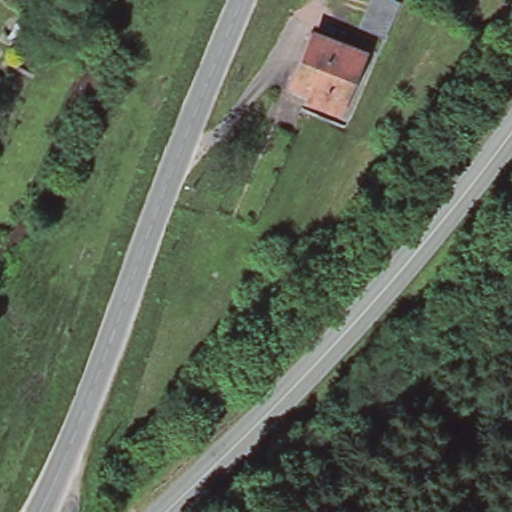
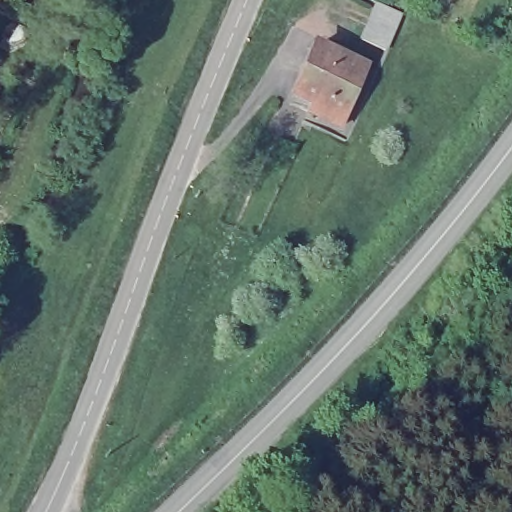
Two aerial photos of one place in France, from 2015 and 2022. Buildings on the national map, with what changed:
unchanged [(364,36),(378,3),(403,14),(388,47),(364,36)]
unchanged [(312,111),(317,101),(297,93),(318,44),(368,64),(342,124),(312,111)]

